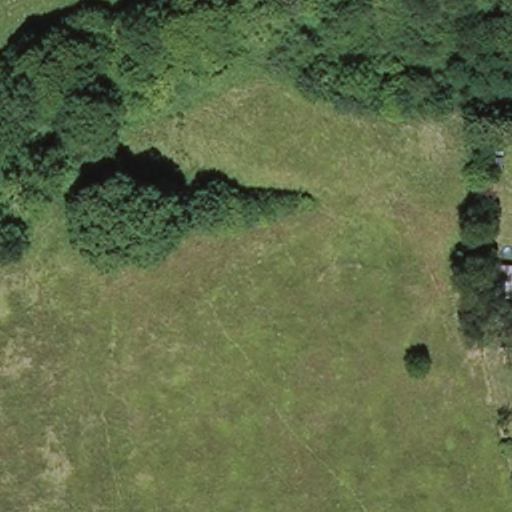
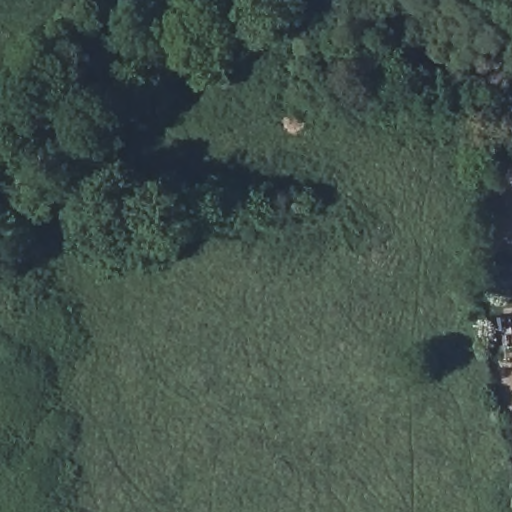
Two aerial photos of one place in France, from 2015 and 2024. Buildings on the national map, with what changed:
unchanged [(501,288),(512,287),(512,319),(504,319),(501,288)]

